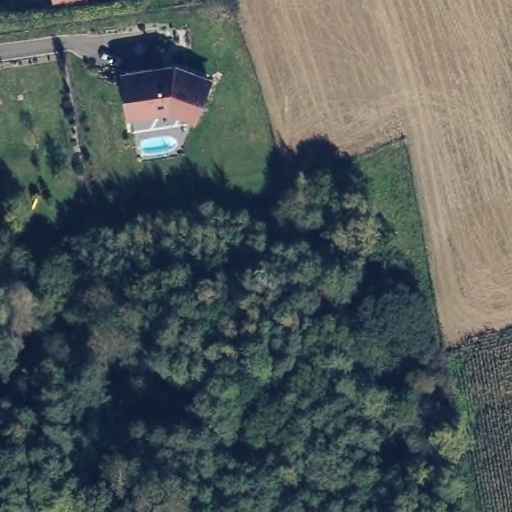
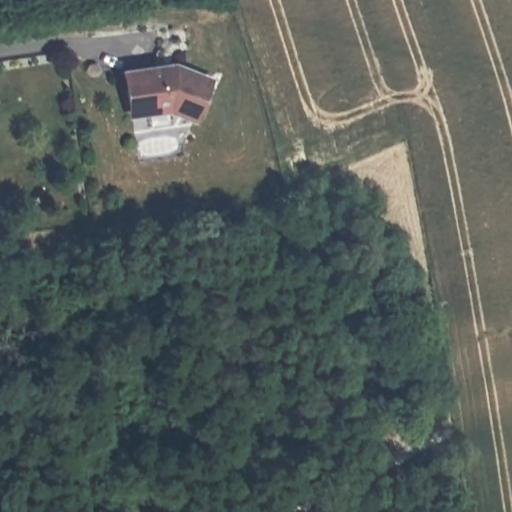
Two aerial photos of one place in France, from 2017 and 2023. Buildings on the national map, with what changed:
unchanged [(52,4),(51,0),(80,0),(52,4)]
unchanged [(198,120),(168,109),(130,115),(122,72),(172,64),(212,77),(198,120)]

